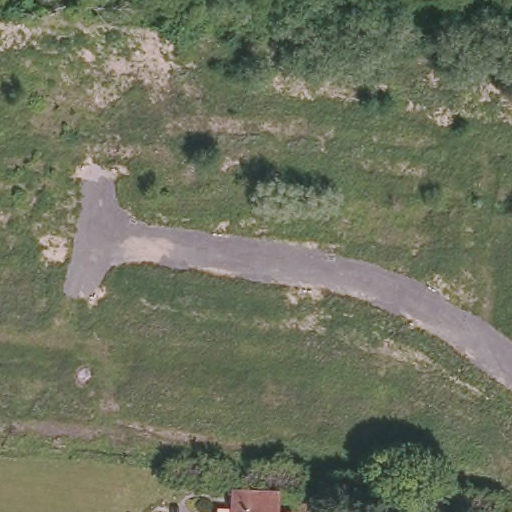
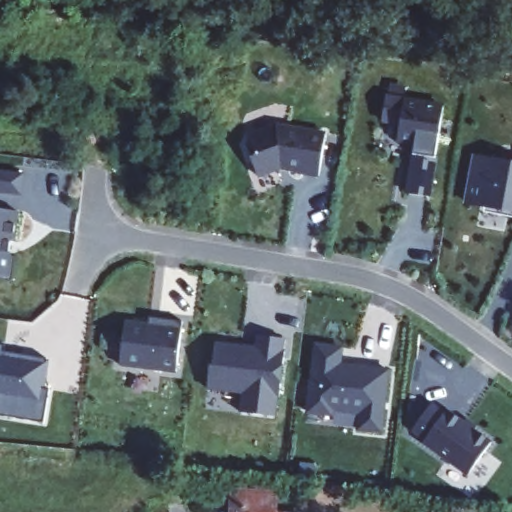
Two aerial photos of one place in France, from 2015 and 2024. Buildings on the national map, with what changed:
unchanged [(458,17),(466,0),(473,0),(496,11),(488,30),(458,17)]
new [(416,154),(413,154),(414,143),(398,140),(400,123),(382,120),(386,97),(443,107),(429,197),(409,194),(416,154)]
new [(279,124),(325,134),(319,176),(279,169),(259,177),(251,155),(257,153),(248,133),(279,124)]
new [(463,204),(473,154),(512,161),(512,213),(463,204)]
new [(21,195),(0,193),(0,173),(23,176),(21,195)]
new [(15,244),(12,243),(10,254),(11,254),(11,257),(16,257),(14,283),(0,282),(0,211),(19,213),(15,244)]
new [(148,323),(149,316),(183,320),(178,371),(119,365),(124,320),(148,323)]
new [(214,365),(217,365),(220,342),(248,345),(248,347),(261,348),(263,335),(288,337),(286,350),(289,350),(284,396),(281,396),(279,416),(246,412),(248,392),(212,387),(214,365)]
new [(0,345),(10,346),(8,357),(49,363),(40,421),(0,415),(0,345)]
new [(316,345),(342,348),(340,366),(352,368),(352,366),(389,370),(382,432),(359,430),(361,413),(333,410),(332,415),(309,412),(316,345)]
new [(468,476),(410,434),(432,403),(490,446),(468,476)]
demolished [(106,475),(76,472),(77,459),(108,461),(106,475)]
unchanged [(302,512),(225,512),(226,505),(241,505),(241,488),(286,490),(286,508),(302,509),(302,512)]

